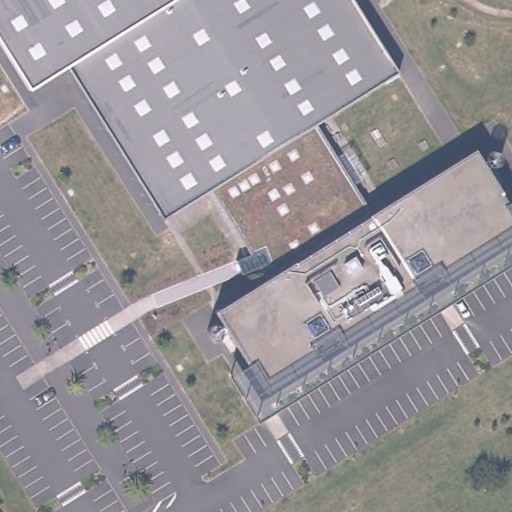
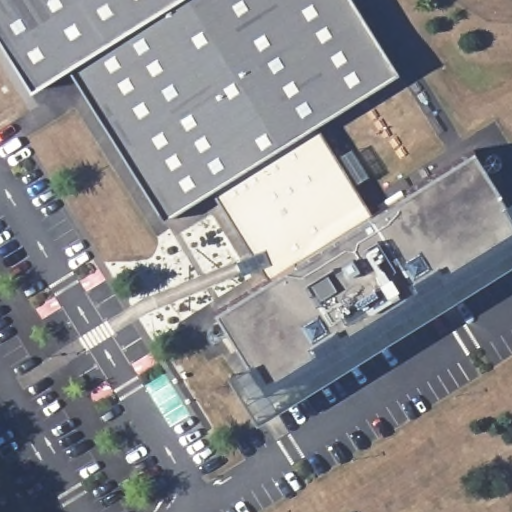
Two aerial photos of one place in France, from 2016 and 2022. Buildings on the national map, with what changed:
unchanged [(164,221),(68,68),(31,91),(0,41),(0,0),(353,0),(399,74),(315,126),(336,159),(349,150),(366,177),(352,185),(371,215),(474,150),(507,203),(512,210),(512,239),(445,281),(438,269),(416,283),(423,295),(344,344),(336,333),(314,347),(321,358),(266,393),(249,365),(216,312),(268,280),(260,267),(243,274),(238,261),(252,255),(212,191),(164,221)]

